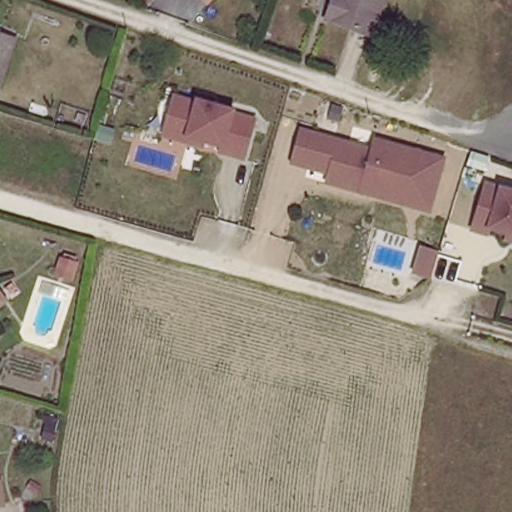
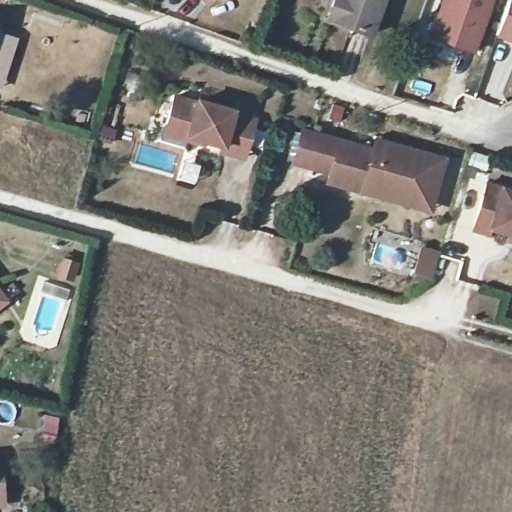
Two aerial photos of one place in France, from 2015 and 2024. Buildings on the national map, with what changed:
unchanged [(340,2),(340,0),(383,0),(372,33),(324,17),(331,0),(340,2)]
new [(479,54),(430,37),(443,0),(496,0),(479,54)]
new [(510,0),(512,0),(512,47),(495,40),(510,0)]
unchanged [(2,25),(0,31),(0,25),(2,25)]
unchanged [(2,25),(22,32),(1,90),(0,90),(0,31),(2,25)]
unchanged [(177,95),(261,117),(248,159),(163,137),(177,95)]
unchanged [(301,127),(370,148),(373,138),(445,158),(431,214),(326,186),(329,174),(290,165),(301,127)]
unchanged [(512,190),(512,241),(472,229),(487,182),(512,190)]
unchanged [(0,301),(0,297),(2,299),(0,301)]
unchanged [(2,506),(0,507),(0,500),(2,506)]

